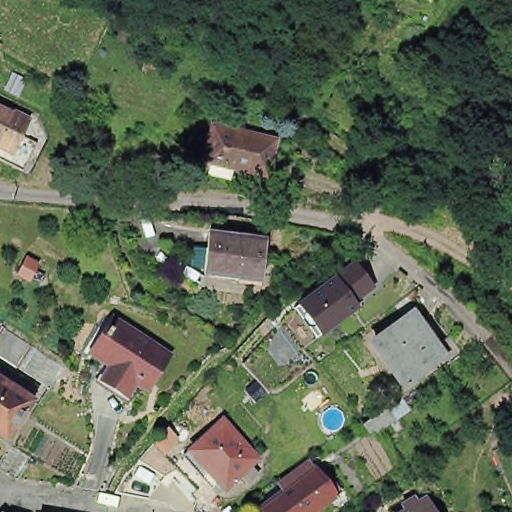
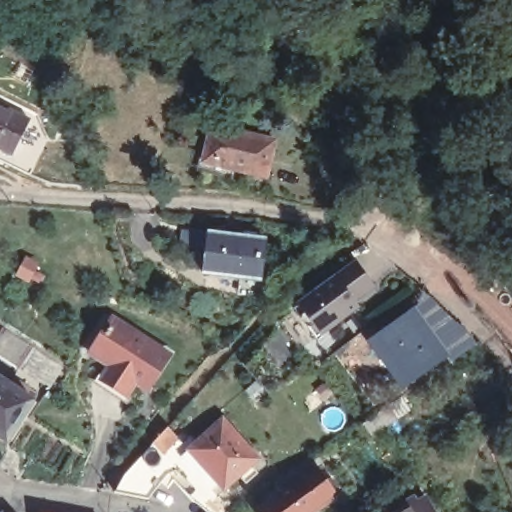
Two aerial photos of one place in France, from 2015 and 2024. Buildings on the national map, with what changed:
unchanged [(0,54),(0,49),(2,51),(0,53),(0,54)]
unchanged [(0,159),(0,102),(30,117),(21,134),(37,142),(22,170),(0,159)]
unchanged [(209,127),(275,143),(267,181),(200,165),(209,127)]
unchanged [(198,233),(251,240),(245,282),(193,277),(198,233)]
unchanged [(20,262),(30,266),(22,281),(12,277),(20,262)]
unchanged [(361,311),(320,338),(295,302),(335,276),(361,311)]
unchanged [(91,352),(102,332),(99,331),(103,323),(107,325),(111,318),(129,330),(134,328),(135,333),(162,350),(153,367),(156,368),(145,386),(133,378),(124,394),(111,387),(114,383),(101,377),(109,363),(91,352)]
unchanged [(364,350),(402,320),(435,363),(397,392),(364,350)]
unchanged [(63,369),(50,390),(18,369),(32,348),(38,352),(63,369)]
unchanged [(8,434),(0,428),(0,368),(35,392),(8,434)]
unchanged [(287,373),(297,385),(281,398),(271,386),(287,373)]
unchanged [(400,418),(373,438),(363,426),(363,425),(390,404),(391,407),(400,418)]
unchanged [(188,468),(193,460),(220,420),(265,451),(260,458),(267,462),(258,477),(250,472),(239,490),(218,476),(212,483),(188,468)]
unchanged [(10,470),(0,463),(0,459),(13,437),(35,451),(21,471),(20,476),(10,470)]
unchanged [(188,468),(181,492),(161,487),(165,478),(171,461),(178,463),(188,468)]
unchanged [(263,505),(272,499),(271,497),(316,464),(337,494),(312,512),(269,512),(263,505)]
unchanged [(411,501),(415,507),(421,502),(427,512),(394,512),(411,501)]
unchanged [(259,508),(263,512),(255,512),(259,508)]
unchanged [(0,509),(3,510),(12,511),(14,512),(0,512),(0,509)]

